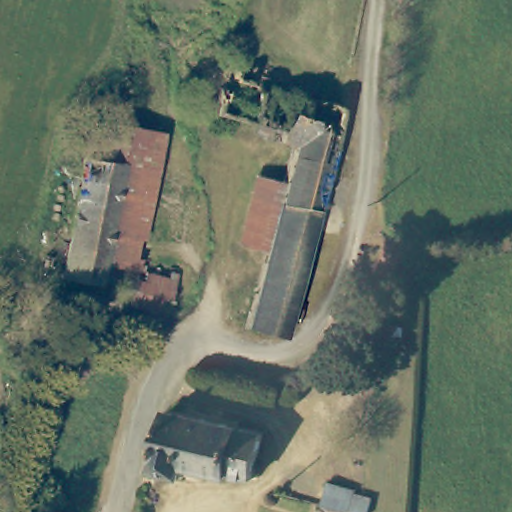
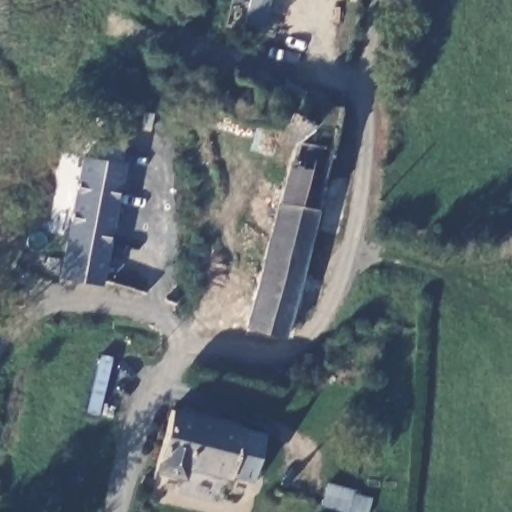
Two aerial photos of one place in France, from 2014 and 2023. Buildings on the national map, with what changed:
unchanged [(287,144),(272,140),(274,131),(342,101),(335,127),(315,209),(274,198),(278,182),(287,144)]
unchanged [(106,126),(164,138),(140,265),(178,277),(169,308),(158,305),(130,295),(101,285),(123,170),(80,158),(88,121),(106,126)]
unchanged [(123,170),(101,285),(99,292),(58,284),(80,158),(123,170)]
unchanged [(235,239),(248,191),(252,176),(278,182),(274,198),(262,246),(235,239)]
unchanged [(284,336),(243,323),(262,246),(274,198),(315,209),(284,336)]
unchanged [(222,481),(201,477),(201,474),(180,467),(176,477),(153,470),(168,413),(185,418),(187,411),(208,416),(207,424),(235,432),(223,477),(222,481)]
unchanged [(259,438),(245,483),(223,477),(235,432),(259,438)]
unchanged [(350,489),(345,512),(343,512),(319,505),(324,481),(350,489)]

